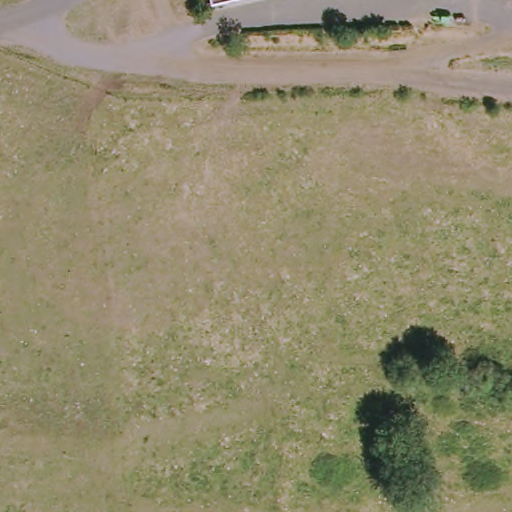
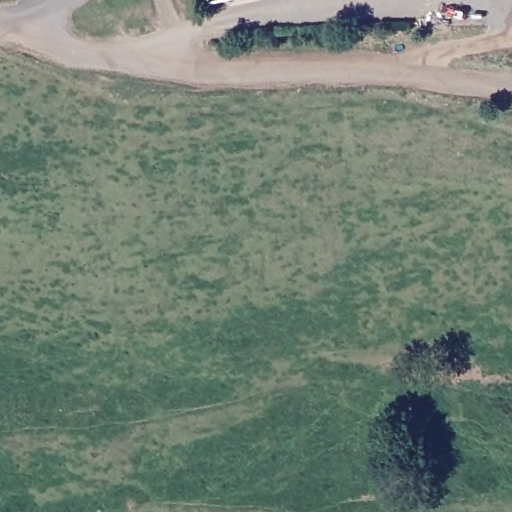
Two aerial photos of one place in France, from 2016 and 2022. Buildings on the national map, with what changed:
[]

